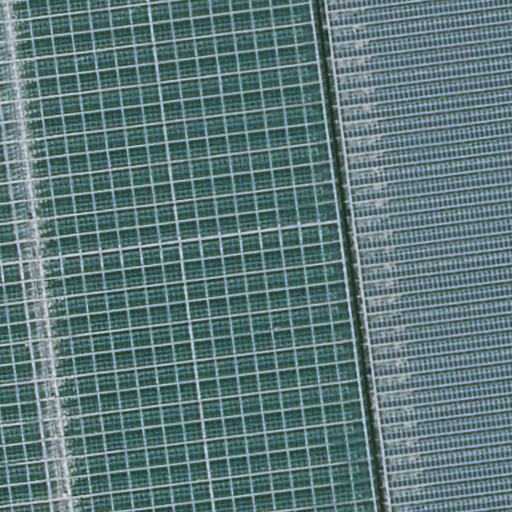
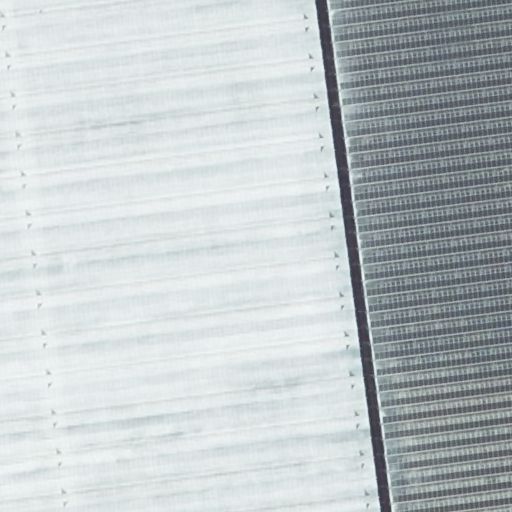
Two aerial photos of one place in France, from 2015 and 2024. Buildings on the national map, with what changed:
unchanged [(0,512),(0,0),(512,0),(512,512),(0,512)]

